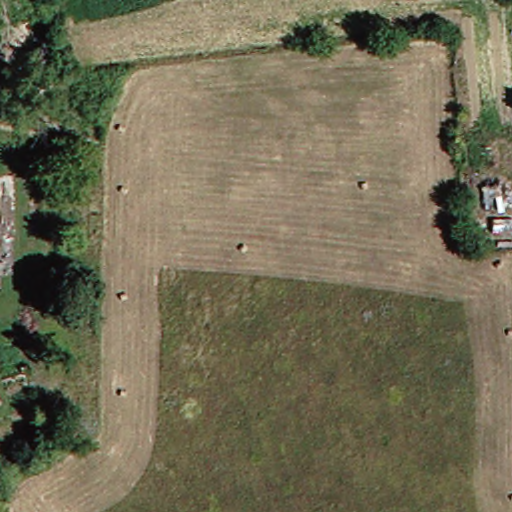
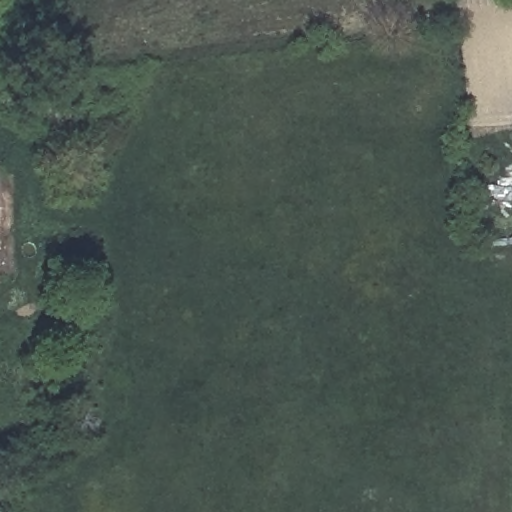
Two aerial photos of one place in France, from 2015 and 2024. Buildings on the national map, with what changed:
unchanged [(1,279),(0,280),(0,167),(1,279)]

